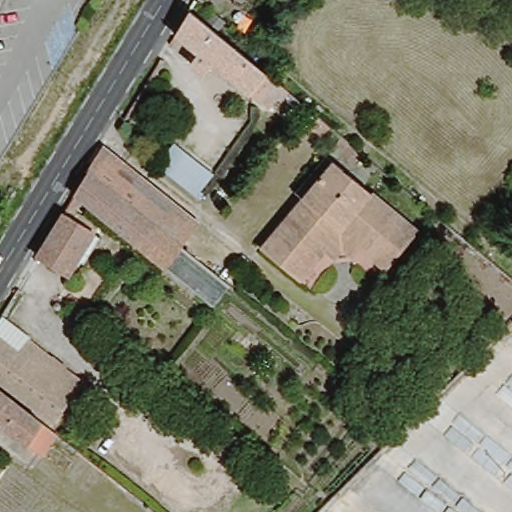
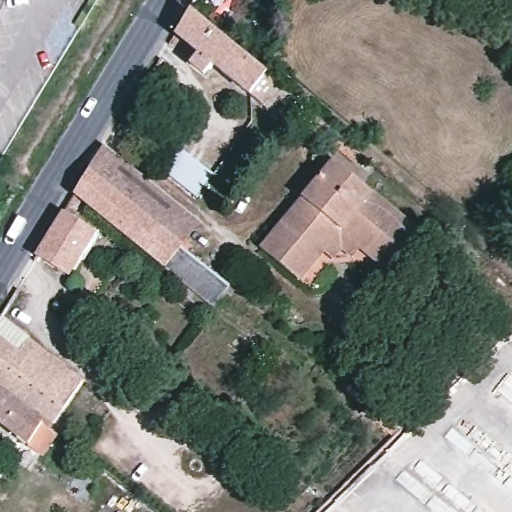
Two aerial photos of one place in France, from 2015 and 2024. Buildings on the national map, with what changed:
unchanged [(184,14),(276,91),(260,110),(205,65),(197,75),(184,65),(192,54),(170,35),(184,14)]
unchanged [(310,111),(327,125),(320,135),(303,121),(310,111)]
unchanged [(211,171),(194,196),(152,156),(172,141),(211,171)]
unchanged [(172,241),(82,168),(97,144),(189,218),(172,241)]
unchanged [(257,249),(299,197),(292,192),(322,156),(333,165),(262,253),(257,249)]
unchanged [(297,282),(262,253),(333,165),(415,231),(385,268),(358,246),(350,256),(340,249),(330,261),(320,254),(297,282)]
unchanged [(177,245),(160,264),(69,190),(82,168),(172,241),(177,245)]
unchanged [(62,220),(66,212),(96,234),(92,240),(65,278),(37,261),(62,220)]
unchanged [(206,302),(160,264),(177,245),(222,283),(206,302)]
unchanged [(28,335),(81,376),(53,420),(0,381),(0,313),(28,335)]
unchanged [(40,454),(26,444),(0,423),(0,388),(43,422),(57,433),(40,454)]

